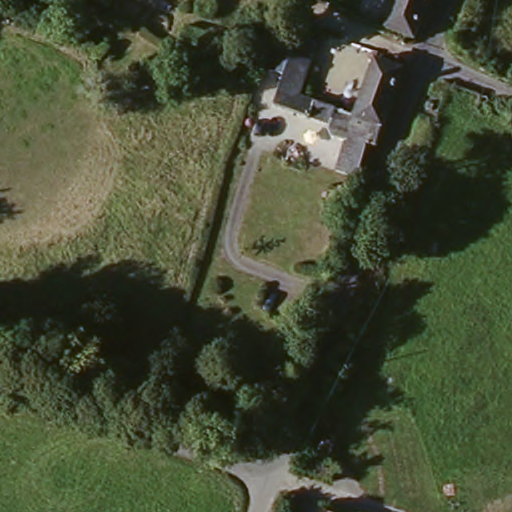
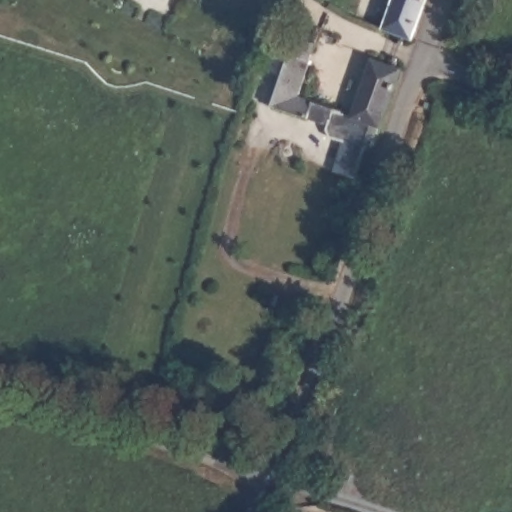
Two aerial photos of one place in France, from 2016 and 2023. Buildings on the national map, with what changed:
unchanged [(395,0),(426,0),(410,45),(383,35),(395,0)]
unchanged [(342,147),(328,142),(325,135),(327,129),(272,108),(282,79),(269,74),(276,56),(277,55),(270,52),(278,34),(297,40),(316,47),(309,64),(310,65),(298,98),(342,115),(353,119),(355,120),(375,64),(402,72),(382,130),(374,150),(369,149),(368,150),(365,149),(359,165),(352,184),(331,176),(338,158),(342,147)]

